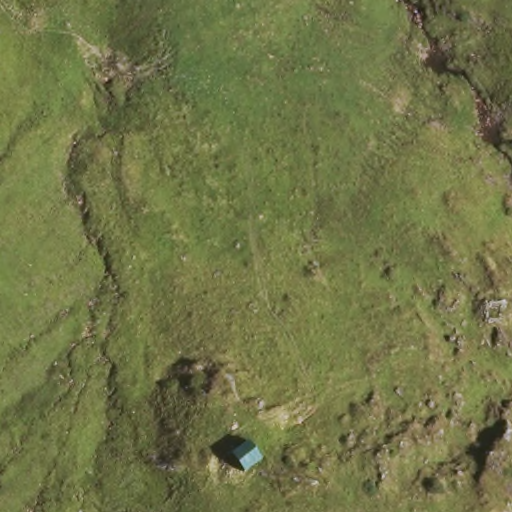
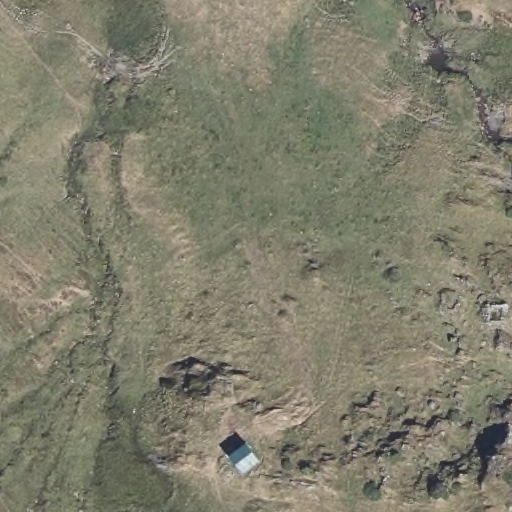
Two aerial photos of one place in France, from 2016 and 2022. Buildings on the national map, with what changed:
unchanged [(265,460),(246,471),(233,452),(251,438),(265,460)]

